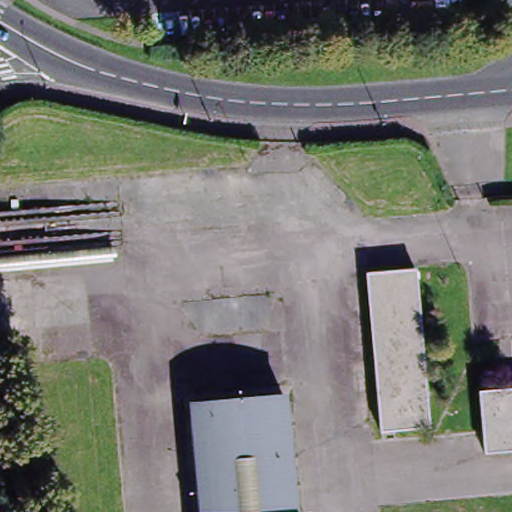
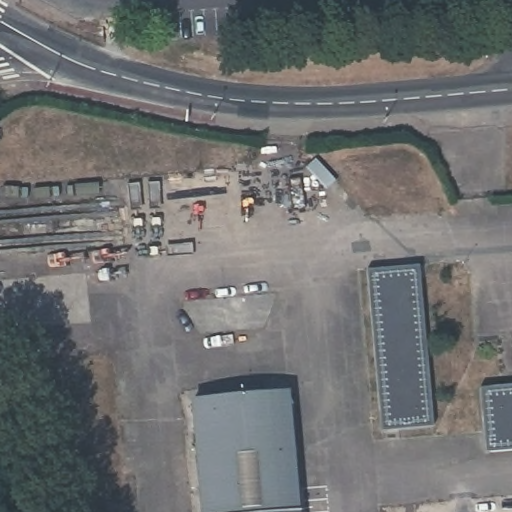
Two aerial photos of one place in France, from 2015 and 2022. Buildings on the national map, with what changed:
unchanged [(368,276),(414,271),(428,428),(382,432),(368,276)]
unchanged [(481,394),(512,391),(512,451),(485,453),(481,394)]
unchanged [(282,395),(293,512),(201,512),(192,403),(282,395)]

